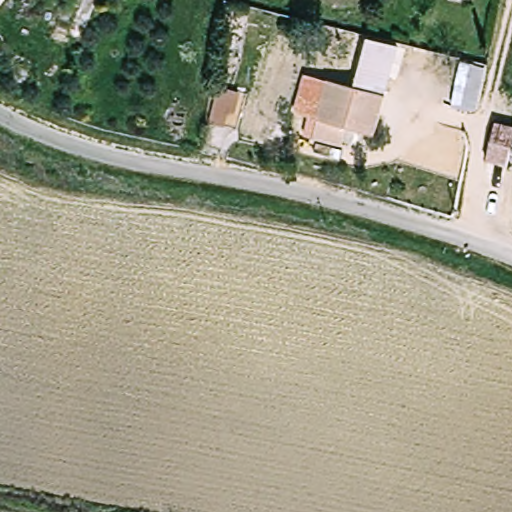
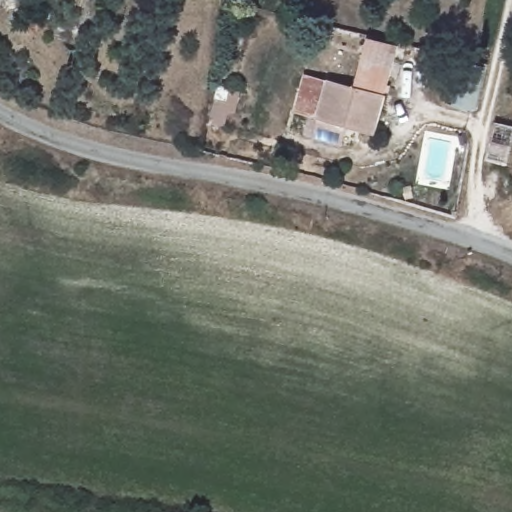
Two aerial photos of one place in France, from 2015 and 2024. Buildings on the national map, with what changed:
unchanged [(298,137),(303,119),(286,114),(296,80),(300,67),(324,75),(322,82),(352,92),(365,46),(393,54),(368,137),(340,129),(335,148),(298,137)]
unchanged [(512,131),(512,135),(506,156),(510,157),(504,171),(483,164),(492,126),(512,131)]

